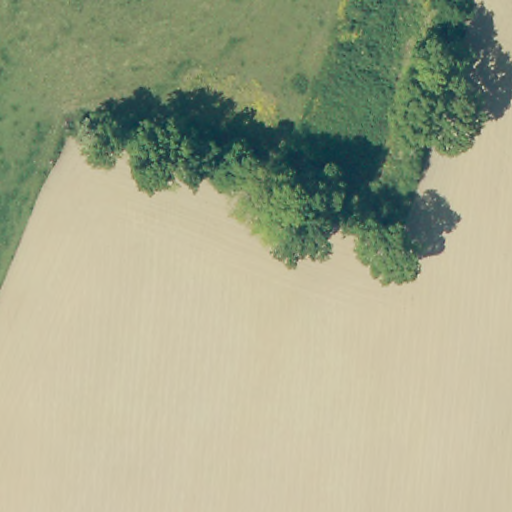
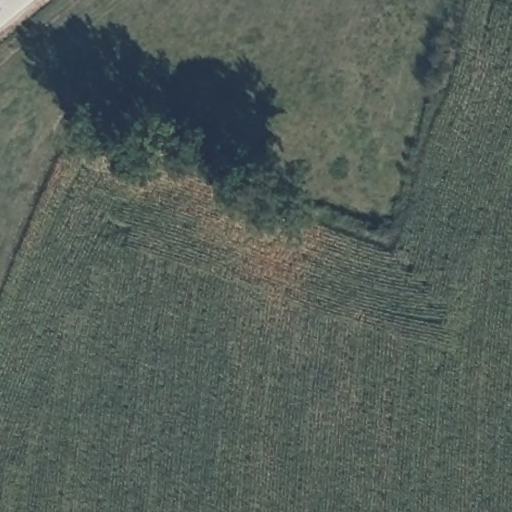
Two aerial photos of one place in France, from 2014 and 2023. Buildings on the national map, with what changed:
new [(36,0),(0,30),(0,0),(36,0)]

